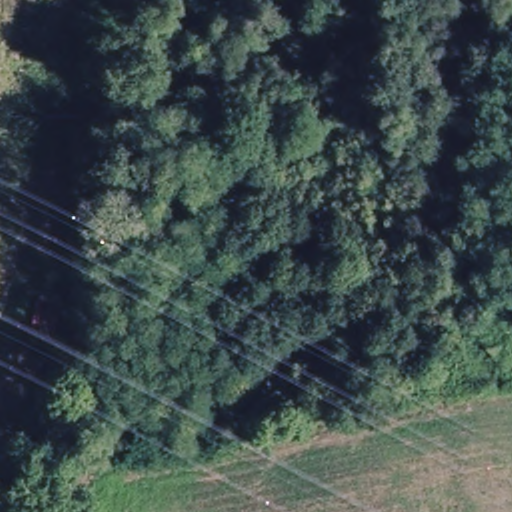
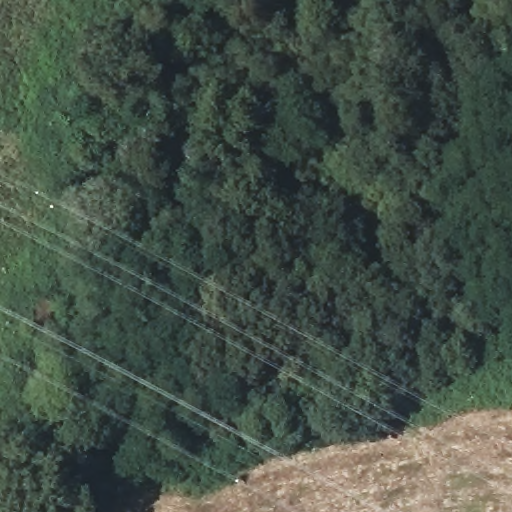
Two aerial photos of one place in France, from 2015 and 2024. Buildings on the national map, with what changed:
unchanged [(64,302),(54,342),(28,338),(35,297),(64,302)]

